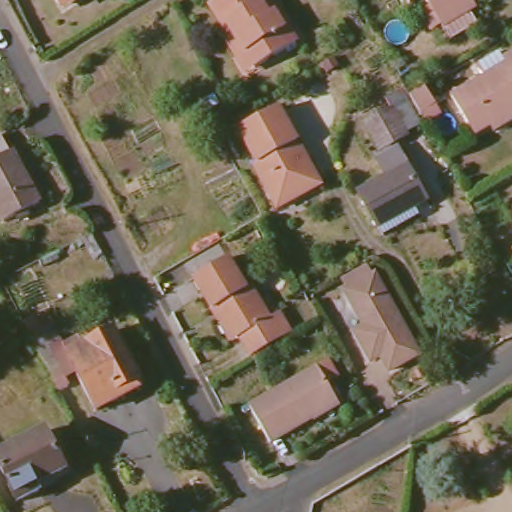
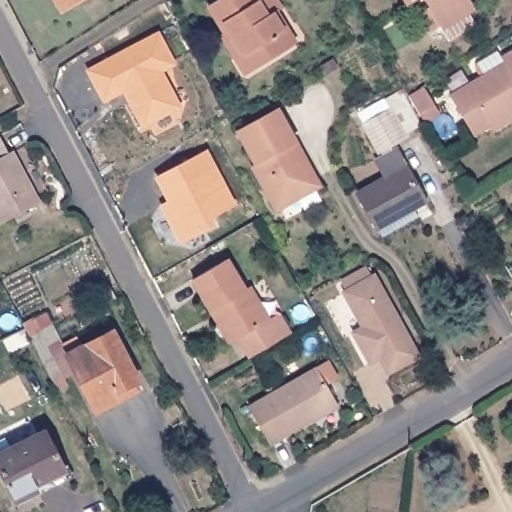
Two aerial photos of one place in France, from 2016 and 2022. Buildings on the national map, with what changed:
unchanged [(57,0),(67,0),(60,5),(57,0)]
unchanged [(270,10),(282,30),(270,37),(278,50),(246,70),(236,54),(228,58),(219,41),(227,36),(224,30),(218,32),(202,4),(208,0),(271,0),(276,6),(270,10)]
unchanged [(398,7),(394,0),(410,0),(409,1),(398,7)]
unchanged [(435,30),(415,0),(458,0),(466,14),(435,30)]
new [(174,63),(161,70),(179,106),(143,125),(131,101),(132,97),(127,87),(104,99),(89,70),(158,34),(174,63)]
unchanged [(469,135),(445,99),(497,65),(494,59),(512,49),(512,111),(469,135)]
unchanged [(432,100),(420,108),(407,89),(419,81),(432,100)]
unchanged [(402,86),(404,90),(424,125),(377,150),(362,121),(387,107),(382,97),(402,86)]
unchanged [(296,200),(278,209),(254,165),(257,162),(240,130),(280,109),(299,144),(295,146),(300,156),(307,158),(318,179),(322,187),(296,200)]
unchanged [(4,150),(32,202),(0,219),(0,149),(1,151),(4,150)]
unchanged [(387,235),(362,190),(392,175),(382,157),(399,149),(408,165),(427,200),(417,205),(424,215),(387,235)]
new [(233,205),(209,216),(212,225),(180,240),(162,205),(174,199),(171,193),(167,195),(157,176),(207,151),(233,205)]
unchanged [(16,223),(25,239),(11,246),(2,230),(16,223)]
unchanged [(197,279),(232,258),(250,290),(256,286),(275,319),(282,315),(296,337),(253,360),(221,307),(216,310),(197,279)]
unchanged [(424,356),(392,375),(384,359),(374,365),(356,333),(366,327),(347,294),(351,292),(346,283),(369,270),(375,279),(379,276),(424,356)]
unchanged [(151,387),(96,420),(78,390),(61,387),(22,325),(49,313),(69,351),(111,323),(151,387)]
unchanged [(317,367),(337,406),(269,445),(247,405),(317,367)]
unchanged [(0,449),(44,425),(66,465),(37,480),(40,484),(22,495),(0,457),(0,449)]

